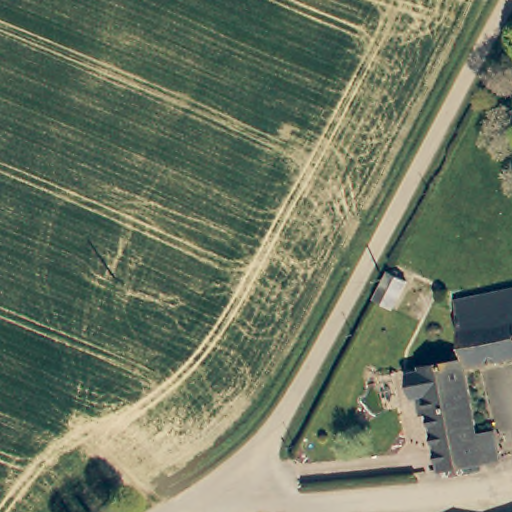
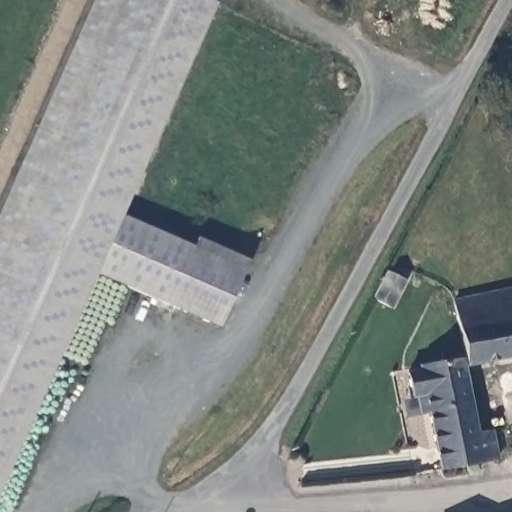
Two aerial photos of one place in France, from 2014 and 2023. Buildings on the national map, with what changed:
new [(97,275),(0,499),(0,213),(95,0),(203,0),(215,5),(122,212),(194,245),(198,238),(249,259),(221,329),(97,275)]
unchanged [(456,316),(454,301),(512,290),(512,357),(466,366),(456,316)]
unchanged [(406,372),(442,363),(462,359),(477,433),(492,429),(499,460),(441,473),(429,419),(421,421),(416,398),(413,399),(406,372)]

